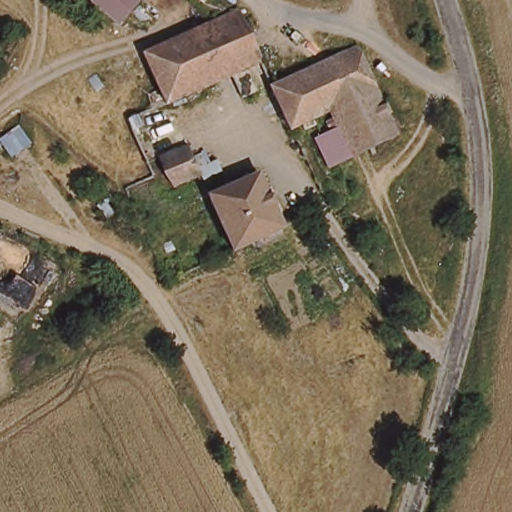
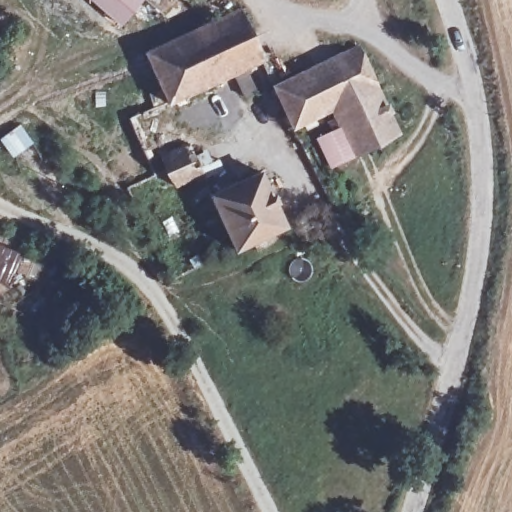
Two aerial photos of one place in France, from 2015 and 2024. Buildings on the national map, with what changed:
unchanged [(91,0),(137,0),(116,23),(91,0)]
unchanged [(149,51),(195,32),(217,23),(246,11),(268,61),(245,71),(255,96),(235,104),(226,80),(172,103),(149,51)]
unchanged [(340,126),(333,111),(295,129),(273,80),(366,36),(391,85),(382,90),(401,137),(358,154),(361,163),(332,171),(320,138),(340,126)]
unchanged [(162,155),(188,142),(204,177),(178,190),(167,168),(162,155)]
unchanged [(260,241),(237,250),(230,236),(212,195),(262,175),(287,229),(260,241)]

